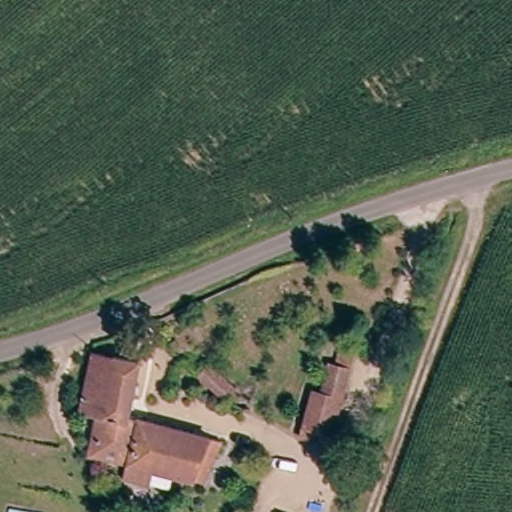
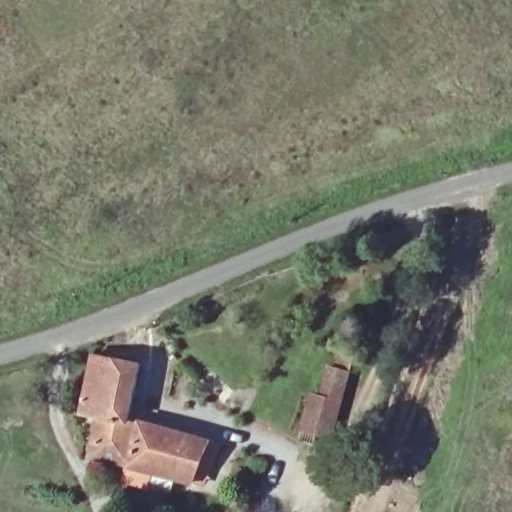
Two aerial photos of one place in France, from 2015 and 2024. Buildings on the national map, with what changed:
unchanged [(135,368),(126,419),(137,423),(212,443),(207,462),(196,459),(189,483),(151,473),(147,490),(122,483),(126,467),(89,456),(97,413),(82,410),(92,359),(135,368)]
unchanged [(208,366),(232,392),(220,403),(196,377),(208,366)]
unchanged [(326,372),(347,379),(343,392),(322,386),(321,386),(326,372)]
unchanged [(322,389),(344,394),(339,412),(317,406),(322,389)]
unchanged [(310,406),(340,413),(333,446),(303,439),(310,406)]

